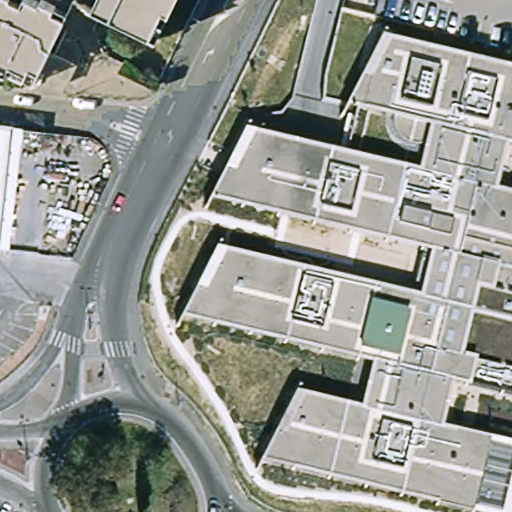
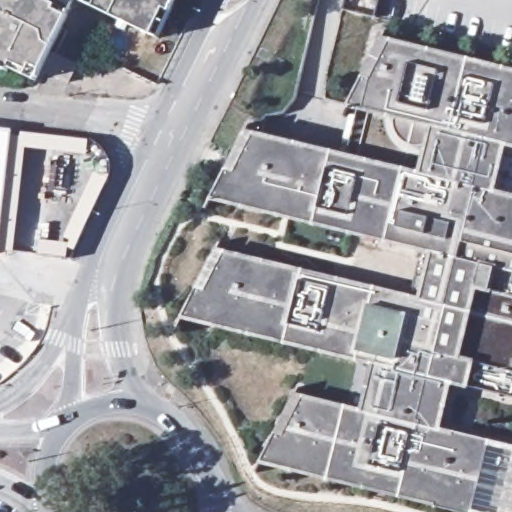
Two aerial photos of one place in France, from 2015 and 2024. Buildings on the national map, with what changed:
unchanged [(30,1),(45,9),(47,6),(63,14),(74,19),(71,25),(54,58),(81,72),(71,90),(45,77),(39,88),(13,75),(11,77),(0,72),(0,0),(28,0),(30,1)]
unchanged [(156,38),(99,11),(104,0),(182,0),(175,16),(163,42),(156,38)]
unchanged [(440,432),(453,435),(454,433),(464,436),(494,443),(512,448),(512,512),(450,512),(435,508),(435,506),(311,474),(263,462),(258,473),(256,472),(280,424),(299,387),(301,388),(297,396),(362,412),(363,407),(373,363),(360,360),(298,345),(184,317),(178,328),(176,327),(198,286),(220,243),(222,244),(219,251),(274,265),(378,290),(415,299),(419,300),(430,252),(427,251),(351,231),(286,215),(236,202),(211,196),(206,207),(204,205),(248,121),(250,122),(246,130),(268,135),(303,144),(345,155),(357,106),(349,104),(343,114),(341,112),(356,87),(363,75),(389,31),(391,32),(387,40),(434,51),(472,60),(512,69),(512,144),(510,144),(498,192),(512,195),(512,398),(452,383),(440,432)]
unchanged [(5,251),(0,250),(0,127),(17,129),(5,251)]

